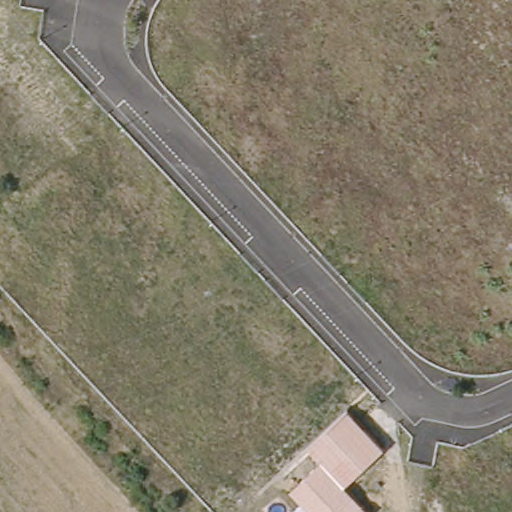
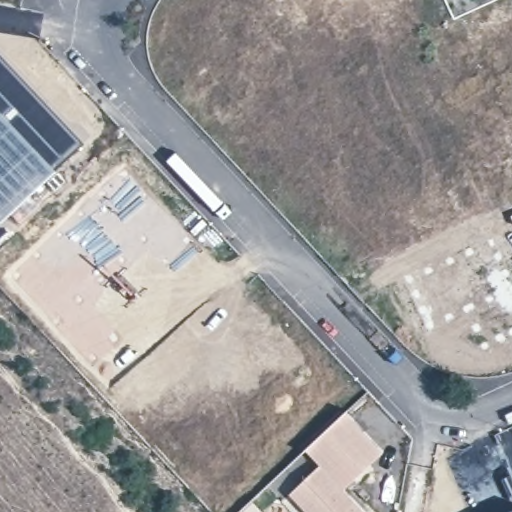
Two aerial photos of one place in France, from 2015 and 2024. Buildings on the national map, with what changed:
new [(80,144),(47,179),(0,223),(0,56),(80,144)]
unchanged [(319,465),(305,451),(345,412),(383,451),(342,488),(364,512),(306,512),(288,493),(319,465)]
new [(512,512),(504,512),(512,508),(512,512)]

